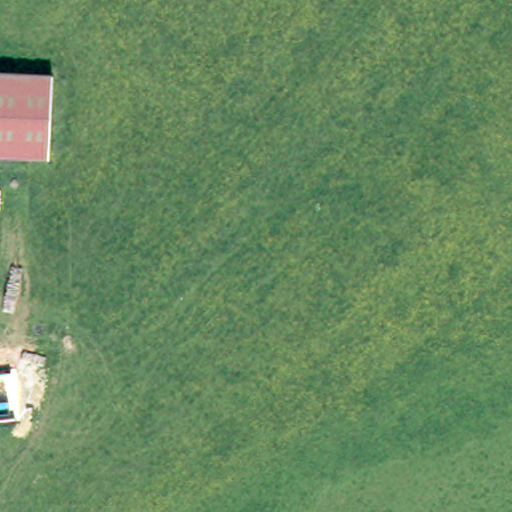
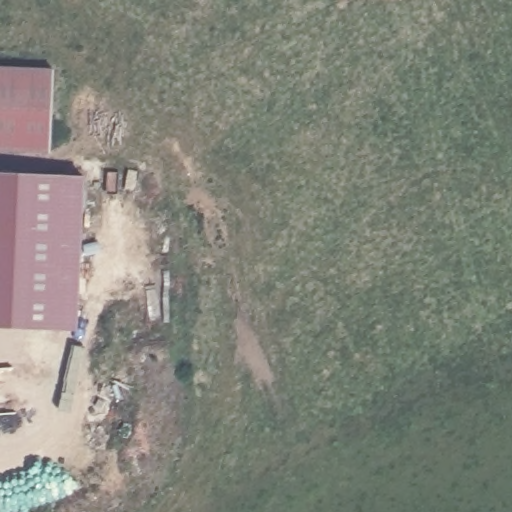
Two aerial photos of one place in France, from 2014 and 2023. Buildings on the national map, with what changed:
unchanged [(0,65),(58,67),(55,149),(0,146),(0,65)]
new [(78,328),(0,325),(0,173),(85,176),(78,328)]

